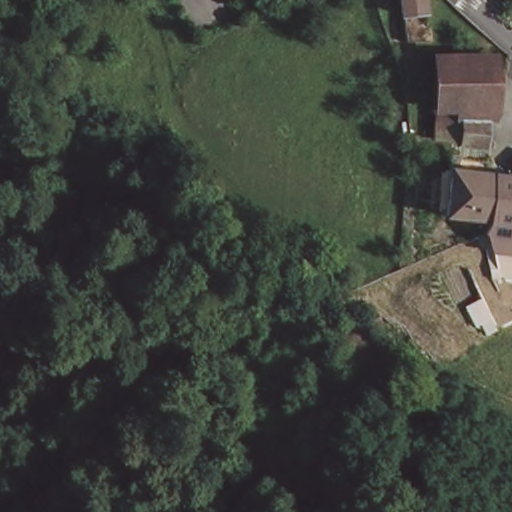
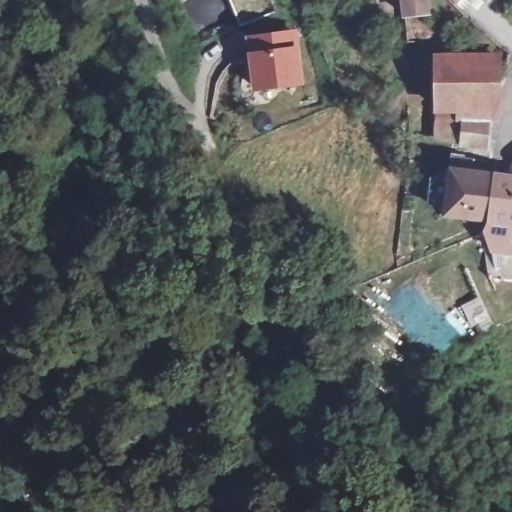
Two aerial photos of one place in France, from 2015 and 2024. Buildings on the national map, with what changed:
unchanged [(409,24),(406,0),(390,3),(390,0),(430,0),(432,22),(409,24)]
new [(247,36),(297,29),(299,46),(304,85),(254,91),(248,52),(247,36)]
unchanged [(437,63),(497,62),(498,113),(488,113),(477,113),(477,126),(460,125),(459,113),(437,113),(437,63)]
unchanged [(488,113),(484,151),(461,149),(434,143),(437,113),(459,113),(460,125),(477,126),(477,113),(488,113)]
unchanged [(491,253),(482,232),(485,214),(449,210),(454,169),(500,175),(512,177),(512,256),(491,253)]

